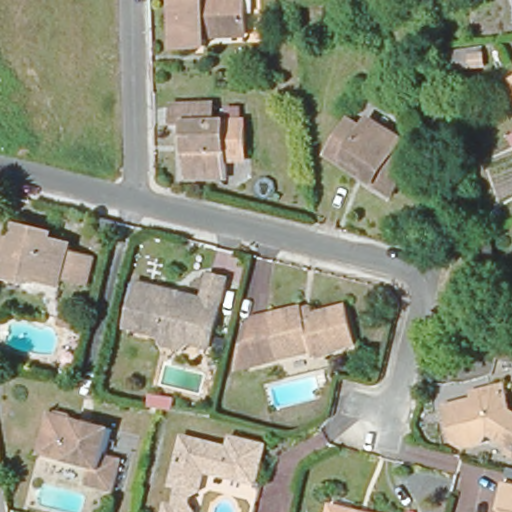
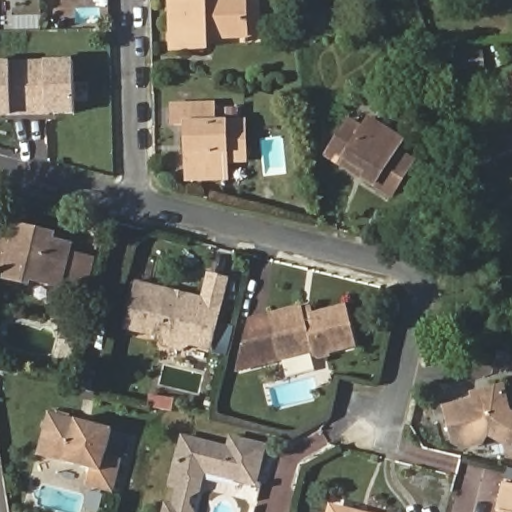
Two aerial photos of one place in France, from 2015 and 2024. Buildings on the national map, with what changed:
unchanged [(249,5),(252,43),(212,47),(212,61),(180,63),(177,10),(179,8),(178,0),(210,0),(210,7),(249,5)]
new [(75,111),(0,114),(0,62),(73,59),(75,111)]
unchanged [(191,126),(182,126),(181,108),(221,106),(222,125),(251,124),(255,162),(231,162),(231,180),(193,180),(191,126)]
unchanged [(327,161),(350,127),(363,136),(369,128),(401,149),(395,157),(412,168),(387,203),(363,187),(342,172),(327,161)]
unchanged [(108,240),(90,235),(94,219),(112,224),(108,240)]
unchanged [(61,281),(60,285),(30,278),(29,283),(7,278),(10,266),(0,265),(0,240),(2,233),(17,237),(19,229),(36,233),(52,237),(51,244),(68,248),(67,254),(92,260),(86,287),(61,281)]
unchanged [(210,277),(227,281),(211,349),(190,344),(184,349),(169,346),(164,338),(132,330),(135,314),(129,312),(135,286),(141,287),(204,301),(210,277)]
unchanged [(315,358),(238,375),(249,325),(305,313),(312,310),(317,325),(347,317),(358,354),(324,363),(317,365),(315,358)]
unchanged [(38,365),(52,361),(48,376),(36,373),(38,365)]
unchanged [(498,381),(506,407),(512,410),(512,452),(505,449),(506,447),(498,432),(491,424),(482,427),(485,437),(471,441),(458,434),(450,403),(474,397),(472,388),(498,381)]
unchanged [(111,463),(128,467),(121,500),(92,493),(96,476),(43,462),(53,420),(60,422),(64,420),(75,423),(78,427),(82,428),(99,432),(117,437),(111,463)]
unchanged [(260,449),(252,485),(201,473),(196,494),(189,498),(186,507),(191,512),(190,512),(162,512),(163,509),(171,512),(177,491),(169,488),(181,442),(226,453),(229,442),(260,449)]
unchanged [(509,491),(512,492),(512,512),(504,512),(509,491)]
unchanged [(7,507),(24,511),(24,512),(8,512),(7,507)]
unchanged [(336,508),(350,512),(335,512),(336,508)]

